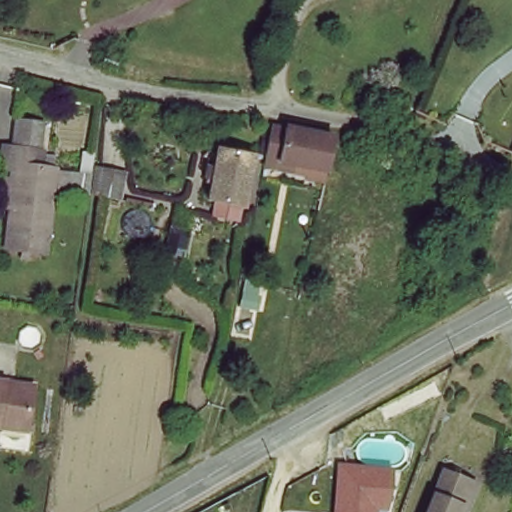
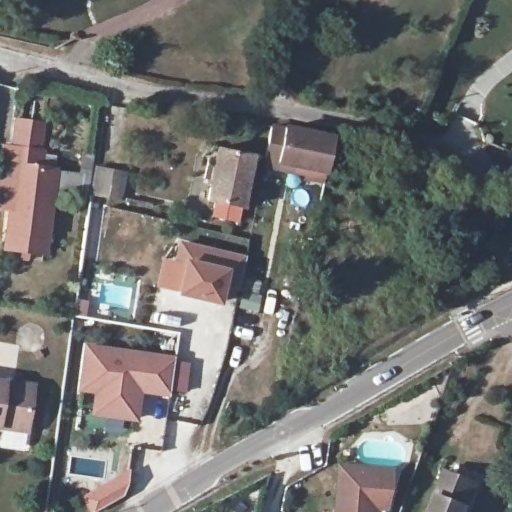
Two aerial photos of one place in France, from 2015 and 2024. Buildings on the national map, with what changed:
unchanged [(46,125),(42,169),(55,170),(45,245),(6,240),(13,191),(5,191),(8,165),(13,120),(46,125)]
unchanged [(270,132),(286,136),(287,135),(328,143),(320,177),(288,167),(285,176),(268,172),(270,162),(265,148),(270,132)]
unchanged [(206,201),(217,148),(261,155),(249,211),(206,201)]
unchanged [(89,200),(95,169),(121,174),(113,206),(89,200)]
new [(225,287),(220,304),(178,295),(178,291),(156,285),(162,257),(175,260),(180,240),(246,256),(238,290),(225,287)]
new [(90,415),(94,395),(77,390),(84,344),(173,356),(168,396),(142,391),(137,421),(90,415)]
unchanged [(33,385),(26,429),(0,425),(0,380),(33,385)]
unchanged [(395,466),(388,511),(377,510),(377,512),(332,512),(336,463),(395,466)]
unchanged [(473,483),(464,512),(461,512),(455,511),(455,512),(425,512),(441,473),(473,483)]

